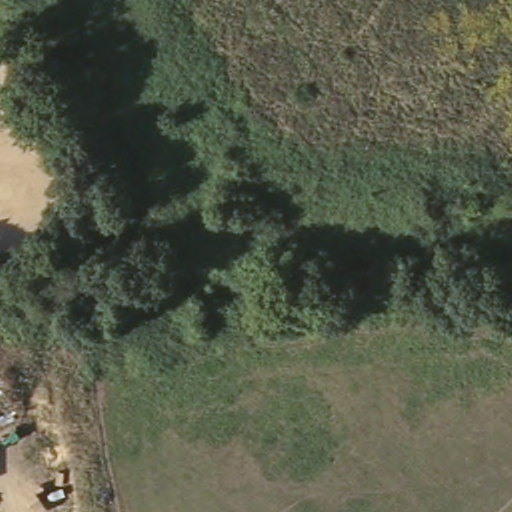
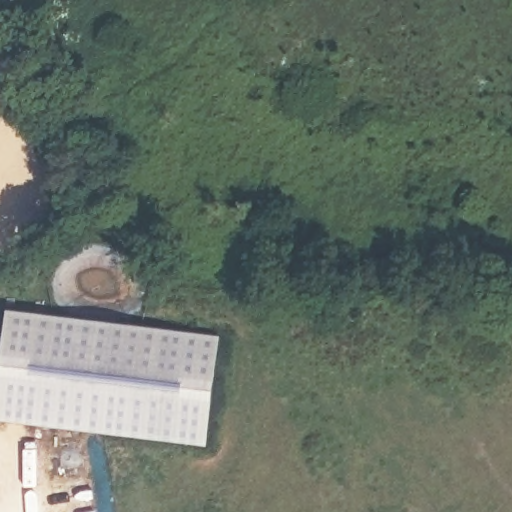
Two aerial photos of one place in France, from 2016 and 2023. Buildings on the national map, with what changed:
new [(220,336),(207,448),(0,424),(0,390),(7,312),(220,336)]

